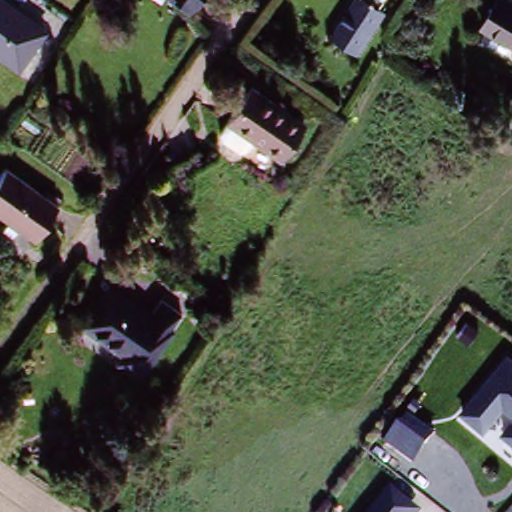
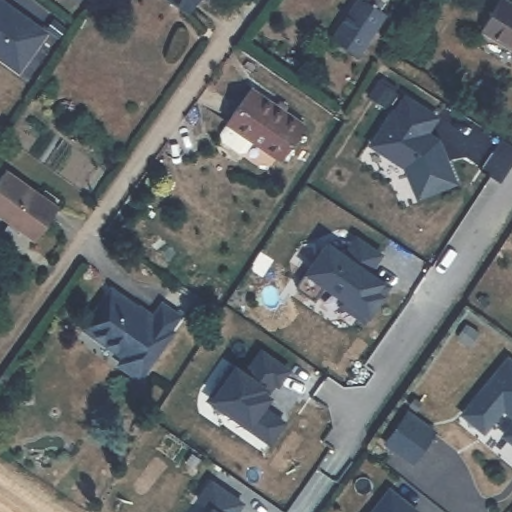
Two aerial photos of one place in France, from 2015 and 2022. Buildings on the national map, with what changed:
unchanged [(17,71),(0,59),(0,0),(7,0),(47,30),(17,71)]
unchanged [(196,0),(191,6),(182,0),(196,0)]
unchanged [(389,0),(385,6),(391,11),(362,53),(337,36),(361,0),(389,0)]
unchanged [(487,28),(505,0),(512,0),(512,42),(487,28)]
unchanged [(288,162),(261,143),(255,151),(248,153),(231,141),(230,133),(236,125),(263,88),(315,125),(288,162)]
new [(435,114),(423,133),(431,139),(436,137),(454,181),(416,197),(403,165),(368,142),(391,106),(393,108),(403,93),(435,114)]
new [(436,137),(431,139),(423,133),(425,130),(436,137)]
unchanged [(26,222),(21,228),(11,221),(16,215),(0,203),(0,181),(13,163),(62,198),(39,231),(26,222)]
new [(382,294),(364,320),(339,303),(343,297),(324,285),(314,300),(295,287),(326,242),(343,254),(355,236),(380,254),(368,271),(382,281),(388,285),(382,294)]
unchanged [(116,361),(122,354),(82,326),(111,285),(151,312),(162,298),(184,314),(139,376),(116,361)]
new [(460,339),(469,326),(479,332),(470,345),(460,339)]
new [(233,365),(246,374),(261,351),(289,370),(279,384),(271,379),(263,391),(270,397),(263,408),(284,422),(271,442),(230,415),(232,412),(211,397),(233,365)]
unchanged [(512,355),(512,416),(505,410),(485,434),(459,413),(507,351),(512,355)]
unchanged [(16,389),(9,383),(16,373),(24,378),(16,389)]
unchanged [(437,429),(411,467),(381,447),(407,408),(437,429)]
unchanged [(500,434),(512,417),(512,444),(500,434)]
new [(208,482),(240,503),(234,512),(207,512),(209,510),(195,501),(208,482)]
unchanged [(423,510),(422,512),(366,512),(388,484),(423,510)]

